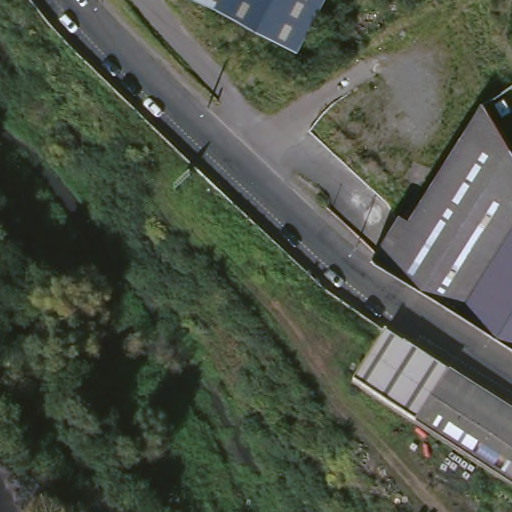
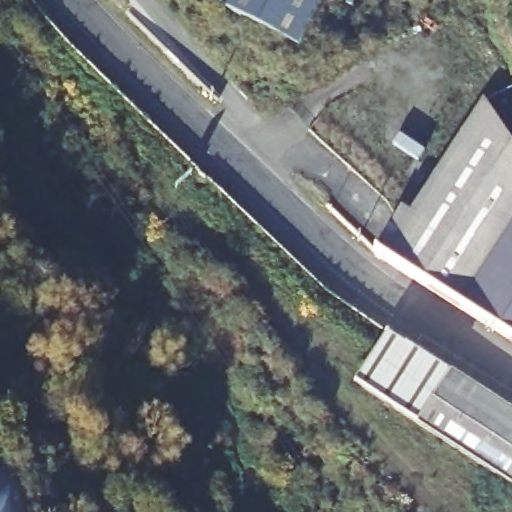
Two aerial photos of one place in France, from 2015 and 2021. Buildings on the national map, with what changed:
unchanged [(209,0),(222,0),(219,5),(209,0)]
unchanged [(219,5),(222,0),(321,0),(295,45),(219,5)]
unchanged [(392,260),(384,253),(413,205),(422,211),(491,100),(512,133),(512,335),(392,260)]
unchanged [(417,423),(354,381),(386,330),(450,372),(417,423)]
unchanged [(512,412),(512,486),(483,467),(417,423),(450,372),(512,412)]

